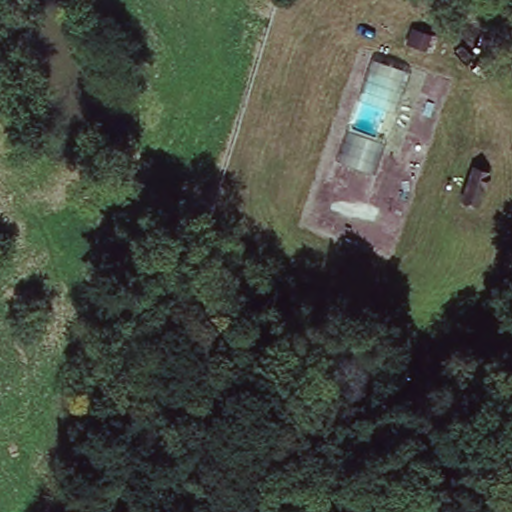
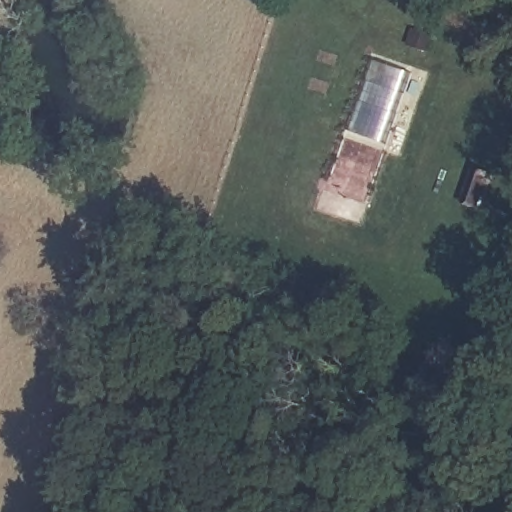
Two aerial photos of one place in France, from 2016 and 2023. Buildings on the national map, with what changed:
unchanged [(453,202),(468,161),(489,171),(473,210),(453,202)]

